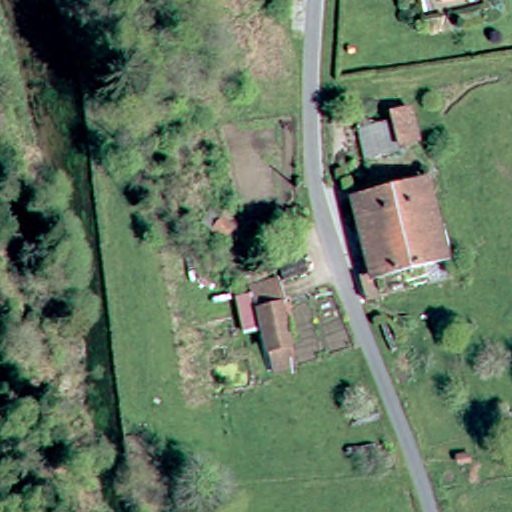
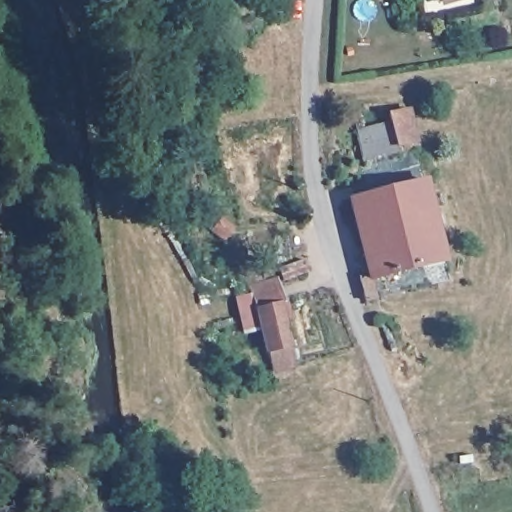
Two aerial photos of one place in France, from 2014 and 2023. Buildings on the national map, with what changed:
unchanged [(439,0),(434,1),(434,0),(439,0)]
unchanged [(384,152),(374,117),(403,110),(409,145),(384,152)]
unchanged [(354,196),(422,177),(427,176),(447,255),(374,273),(379,294),(364,298),(357,270),(371,266),(354,196)]
unchanged [(303,255),(306,268),(279,275),(275,262),(303,255)]
unchanged [(293,348),(271,355),(255,295),(277,289),(293,348)]

